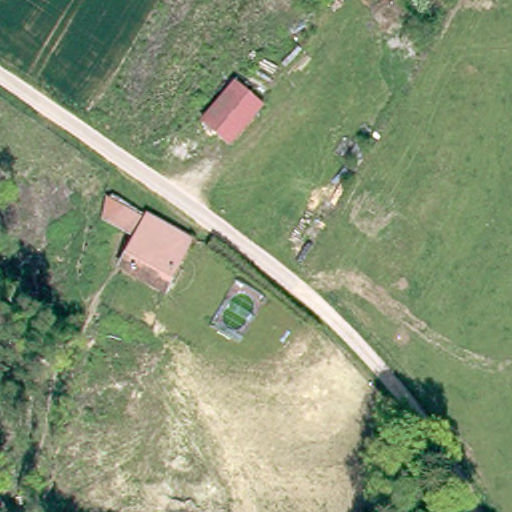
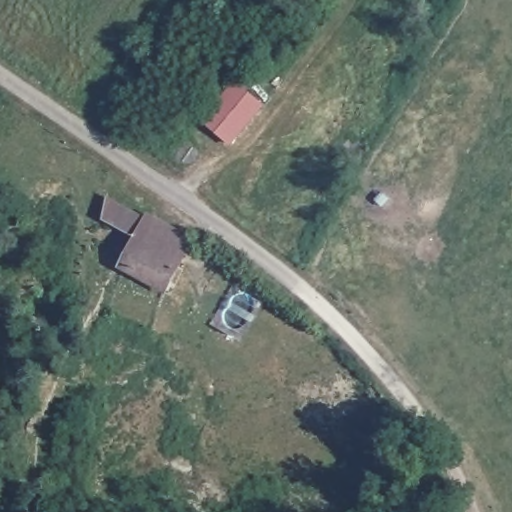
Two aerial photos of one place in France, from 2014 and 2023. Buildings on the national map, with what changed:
unchanged [(205,122),(235,81),(264,102),(235,143),(205,122)]
unchanged [(157,289),(117,264),(133,238),(102,217),(105,199),(106,196),(144,222),(184,250),(157,289)]

